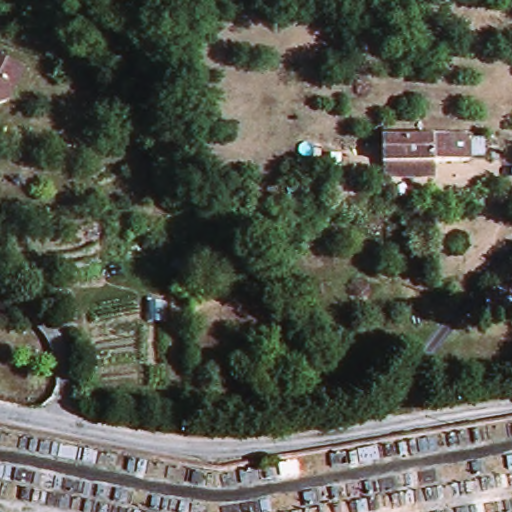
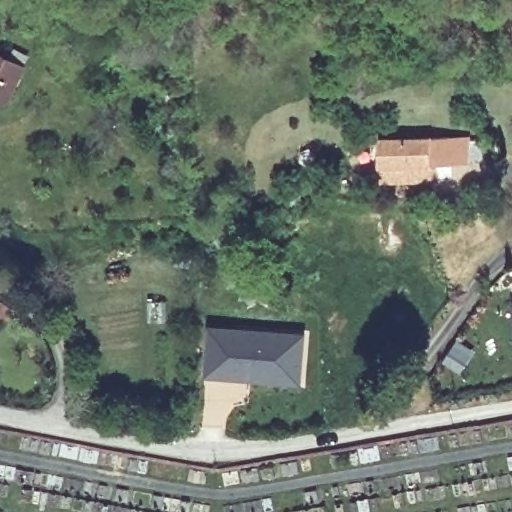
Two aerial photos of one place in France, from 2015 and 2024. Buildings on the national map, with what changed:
unchanged [(9,98),(0,102),(0,55),(23,65),(9,98)]
unchanged [(471,171),(433,172),(434,187),(385,188),(384,148),(470,146),(471,171)]
unchanged [(485,289),(512,285),(512,310),(490,314),(485,289)]
new [(208,377),(211,329),(305,336),(301,384),(243,379),(227,379),(208,377)]
new [(458,341),(479,354),(466,374),(462,371),(446,362),(456,346),(458,341)]

